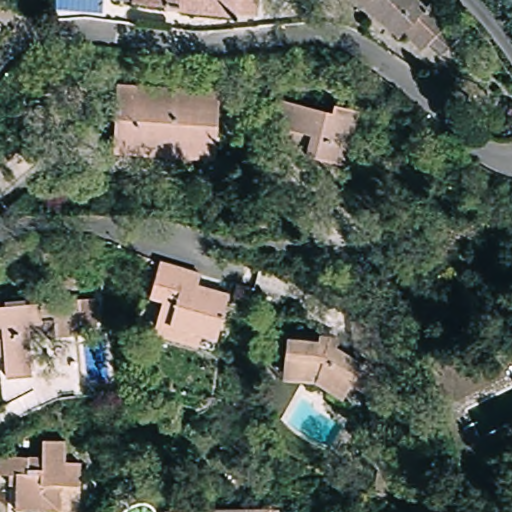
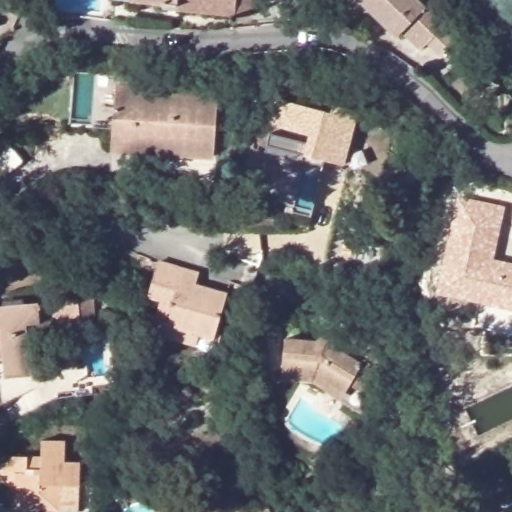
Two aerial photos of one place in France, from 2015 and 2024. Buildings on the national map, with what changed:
unchanged [(237,0),(237,11),(219,9),(219,12),(158,6),(146,5),(145,0),(237,0)]
unchanged [(423,51),(406,32),(399,37),(366,3),(363,0),(419,0),(428,10),(432,7),(451,26),(453,24),(465,36),(442,57),(430,45),(423,51)]
unchanged [(215,157),(115,150),(119,88),(220,94),(215,157)]
unchanged [(279,121),(286,96),(339,109),(341,102),(363,107),(350,160),(314,150),(315,145),(276,134),(279,121)]
new [(494,258),(512,263),(512,309),(437,292),(457,196),(506,206),(494,258)]
unchanged [(156,327),(165,295),(154,292),(164,257),(201,268),(198,280),(229,290),(217,333),(202,328),(198,340),(156,327)]
unchanged [(251,285),(248,296),(235,292),(238,281),(251,285)]
unchanged [(96,326),(80,327),(79,333),(54,335),(52,322),(26,322),(29,373),(4,375),(2,353),(0,353),(0,303),(93,298),(96,326)]
unchanged [(339,394),(309,376),(285,373),(279,372),(280,358),(283,335),(314,337),(315,330),(325,332),(335,337),(332,343),(354,357),(358,318),(381,321),(375,360),(380,364),(368,392),(365,415),(337,398),(339,394)]
unchanged [(67,462),(84,464),(82,487),(65,486),(62,512),(47,512),(17,510),(18,476),(1,475),(0,462),(8,456),(46,457),(47,442),(69,443),(67,462)]
unchanged [(162,505),(286,509),(285,512),(162,512),(162,505)]
new [(506,512),(512,511),(512,512),(506,512)]

